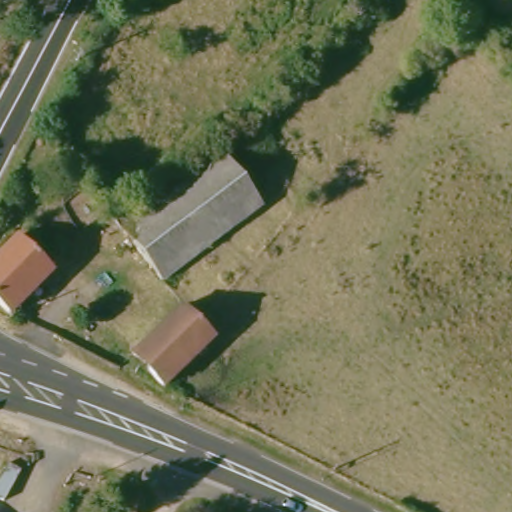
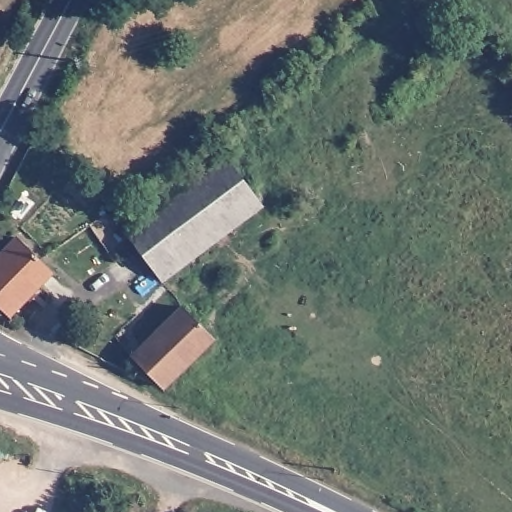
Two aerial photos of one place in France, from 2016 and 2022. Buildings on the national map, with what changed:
unchanged [(222,152),(265,201),(247,216),(205,168),(222,152)]
unchanged [(247,216),(170,283),(127,237),(205,168),(247,216)]
unchanged [(11,318),(0,309),(0,263),(17,244),(52,276),(11,318)]
unchanged [(215,329),(162,389),(127,359),(180,302),(194,312),(215,329)]

